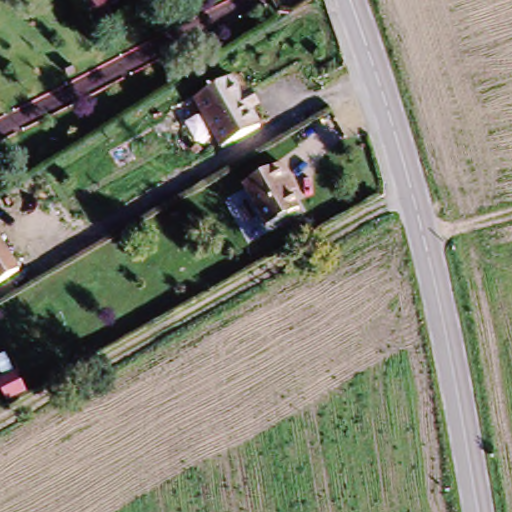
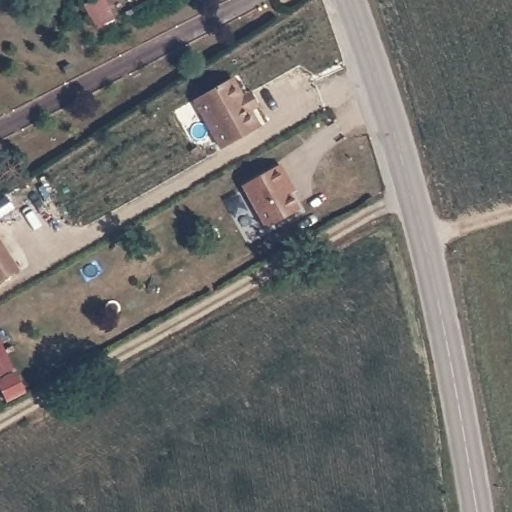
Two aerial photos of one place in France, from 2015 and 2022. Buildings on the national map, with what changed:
unchanged [(240,91),(267,145),(227,164),(200,111),(240,91)]
unchanged [(284,164),(292,178),(288,181),(302,212),(267,230),(244,183),(284,164)]
unchanged [(2,277),(0,278),(0,275),(2,277)]

